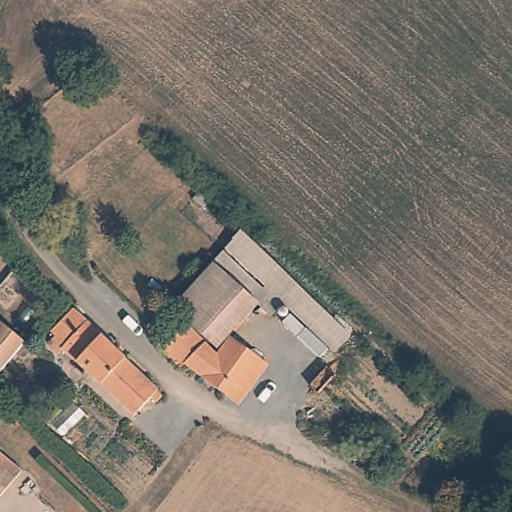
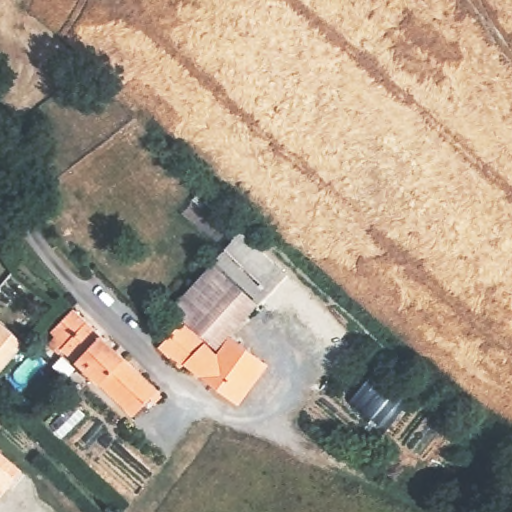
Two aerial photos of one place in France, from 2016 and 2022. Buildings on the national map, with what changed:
unchanged [(352,338),(337,355),(286,305),(275,316),(258,301),(216,261),(242,231),(352,338)]
unchanged [(217,346),(192,322),(174,306),(216,261),(258,301),(231,331),(217,346)]
unchanged [(67,339),(56,348),(44,336),(74,306),(126,358),(107,380),(67,339)]
unchanged [(0,370),(0,322),(23,342),(0,370)]
unchanged [(169,347),(192,322),(217,346),(221,349),(231,331),(271,355),(249,397),(190,364),(187,368),(169,347)]
unchanged [(126,358),(157,388),(156,390),(162,396),(156,402),(150,396),(136,411),(107,380),(126,358)]
unchanged [(0,496),(0,465),(15,478),(0,496)]

